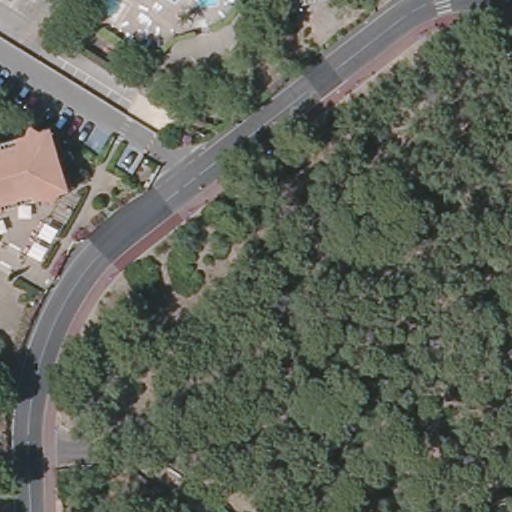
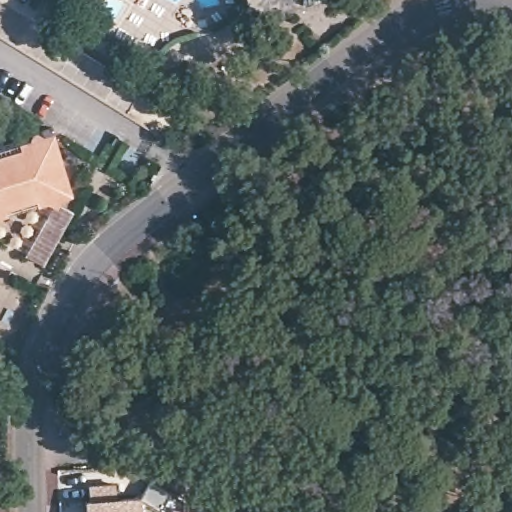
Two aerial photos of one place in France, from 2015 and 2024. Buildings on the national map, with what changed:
unchanged [(32,126),(41,131),(42,134),(26,138),(25,136),(32,126)]
unchanged [(17,144),(16,138),(25,136),(42,134),(41,131),(50,129),(68,189),(60,192),(59,193),(43,194),(45,197),(33,200),(4,209),(0,211),(0,149),(17,144)]
unchanged [(44,267),(25,255),(54,203),(45,197),(43,194),(58,190),(60,194),(79,204),(44,267)]
new [(117,482),(117,494),(141,496),(141,512),(84,512),(83,496),(87,496),(87,483),(117,482)]

